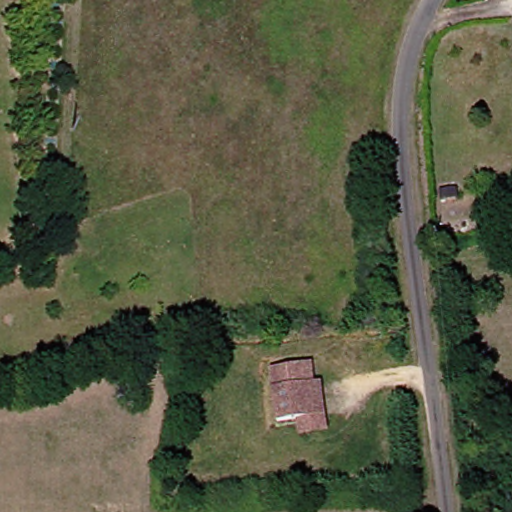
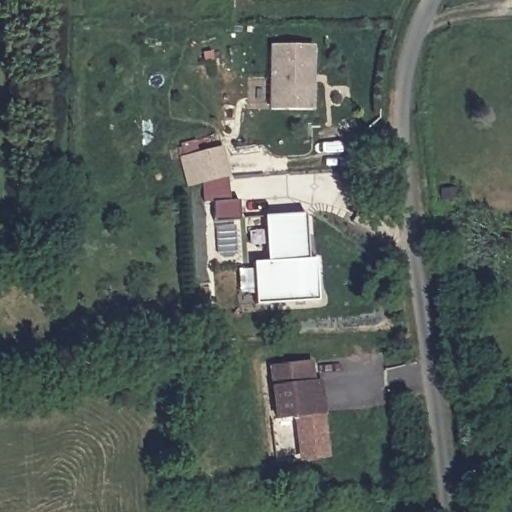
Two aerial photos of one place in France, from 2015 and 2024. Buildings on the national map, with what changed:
new [(313,44),(312,109),(270,109),(270,45),(313,44)]
new [(230,176),(225,177),(231,198),(235,197),(240,217),(218,223),(213,203),(205,205),(200,184),(187,187),(179,157),(223,146),(230,176)]
new [(304,259),(312,259),(315,301),(255,304),(253,263),(267,262),(264,217),(302,215),(304,259)]
unchanged [(302,439),(302,424),(280,423),(282,369),(320,370),(320,390),(327,390),(327,407),(327,424),(327,439),(302,439)]

